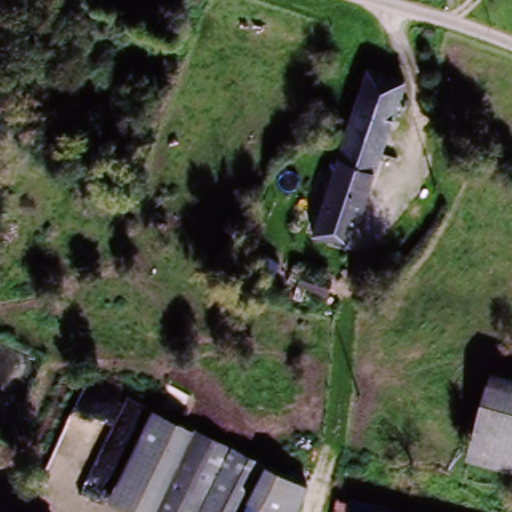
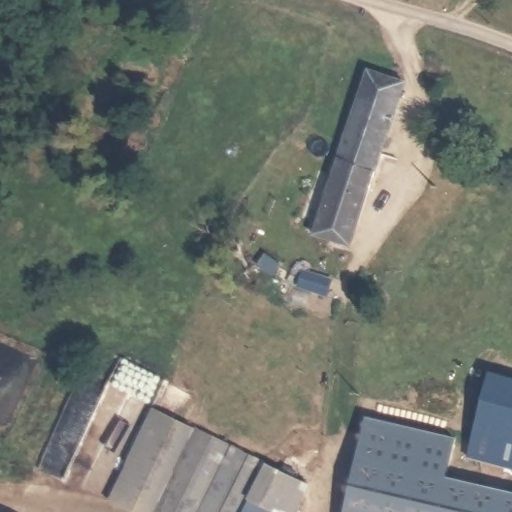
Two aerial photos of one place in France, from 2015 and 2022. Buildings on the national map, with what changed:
unchanged [(335,159),(364,72),(401,85),(371,173),(335,159)]
unchanged [(347,245),(310,232),(335,159),(371,173),(347,245)]
unchanged [(512,473),(471,463),(490,379),(512,384),(512,473)]
unchanged [(148,512),(109,512),(104,510),(154,405),(190,422),(148,512)]
new [(452,437),(445,474),(512,493),(512,512),(346,512),(367,420),(452,437)]
unchanged [(148,512),(190,422),(208,430),(169,512),(148,512)]
unchanged [(192,512),(169,512),(208,430),(226,439),(192,512)]
unchanged [(192,512),(226,439),(245,448),(215,512),(192,512)]
unchanged [(236,512),(215,512),(245,448),(262,456),(236,512)]
unchanged [(307,477),(289,511),(291,512),(236,512),(262,456),(307,477)]
demolished [(395,512),(338,512),(341,498),(395,512)]

